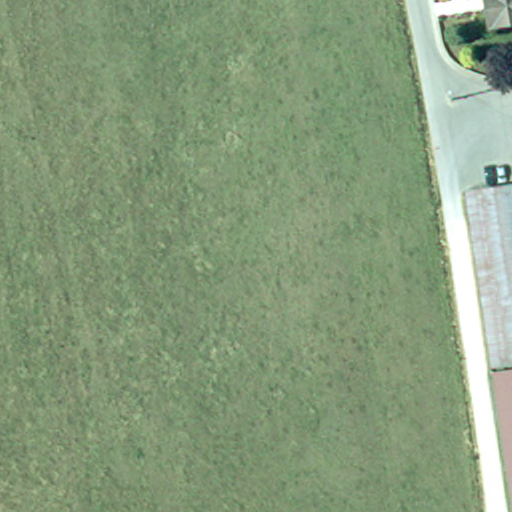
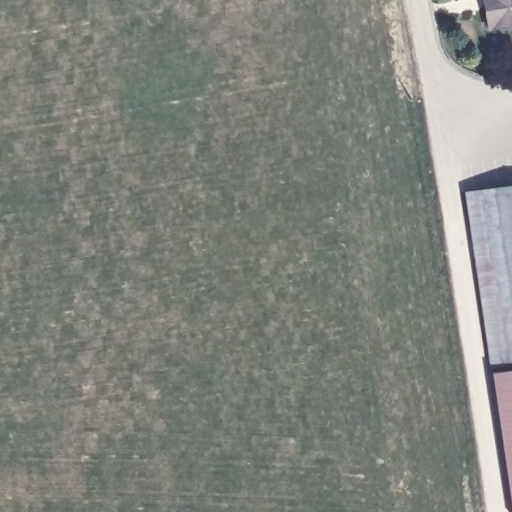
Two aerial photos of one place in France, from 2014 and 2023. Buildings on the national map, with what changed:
unchanged [(489,27),(485,0),(512,0),(512,23),(489,27)]
unchanged [(490,368),(465,193),(512,186),(512,365),(490,368)]
unchanged [(487,375),(512,371),(512,512),(509,512),(487,375)]

